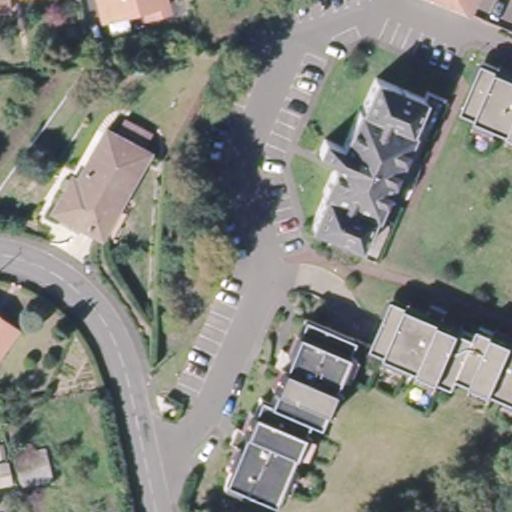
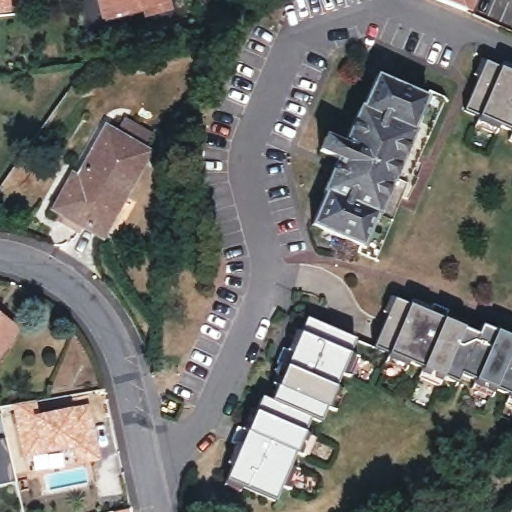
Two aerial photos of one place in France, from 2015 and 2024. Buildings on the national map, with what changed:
unchanged [(147,12),(144,5),(105,14),(102,0),(168,0),(170,7),(147,12)]
unchanged [(446,0),(462,0),(460,6),(446,0)]
unchanged [(499,123),(496,132),(479,124),(482,116),(469,109),(483,76),(477,73),(484,57),(490,60),(504,66),(507,60),(512,62),(512,128),(499,123)]
unchanged [(354,248),(357,240),(308,219),(322,186),(318,184),(330,155),(312,146),(319,131),(336,139),(353,100),(356,101),(370,71),(421,93),(424,86),(441,94),(414,153),(422,157),(404,197),(397,194),(370,255),(354,248)]
unchanged [(84,230),(39,206),(55,175),(60,177),(88,126),(94,129),(101,115),(132,132),(125,147),(128,148),(84,230)]
unchanged [(489,387),(486,396),(468,388),(472,380),(456,373),(453,381),(434,373),(431,382),(416,376),(419,367),(403,360),(399,369),(381,361),(384,352),(372,347),(393,300),(404,305),(407,299),(428,307),(429,304),(444,311),(444,314),(462,322),(459,327),(473,333),(476,326),(493,332),(495,327),(512,335),(512,407),(501,402),(504,394),(489,387)]
unchanged [(234,462),(229,460),(237,442),(234,441),(241,425),(245,426),(252,407),(258,410),(264,395),(275,399),(280,385),(275,382),(283,365),(279,363),(286,347),(290,347),(298,328),(304,331),(310,317),(358,338),(352,355),(361,358),(354,375),(344,371),(338,385),(347,389),(339,407),(330,403),(323,419),(314,417),(308,431),(316,435),(309,453),(299,450),(294,463),(302,467),(295,485),(286,481),(278,500),(245,485),(243,490),(225,483),(229,477),(234,462)]
unchanged [(0,332),(0,323),(4,326),(0,332)]
new [(39,413),(71,405),(89,402),(99,460),(78,463),(74,447),(42,454),(23,459),(12,403),(35,400),(39,413)]
unchanged [(0,440),(2,440),(7,460),(0,462),(0,440)]
demolished [(14,453),(40,447),(48,475),(20,482),(14,453)]

